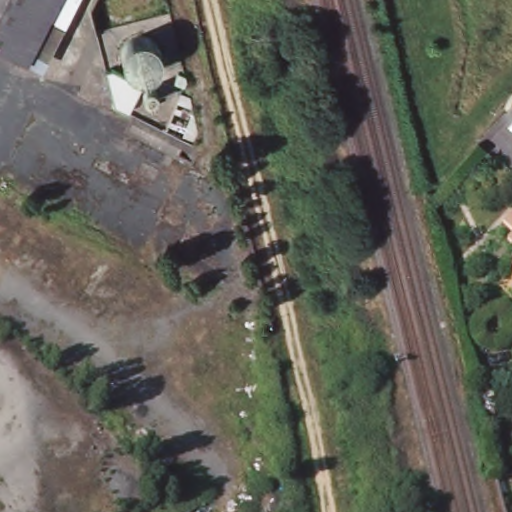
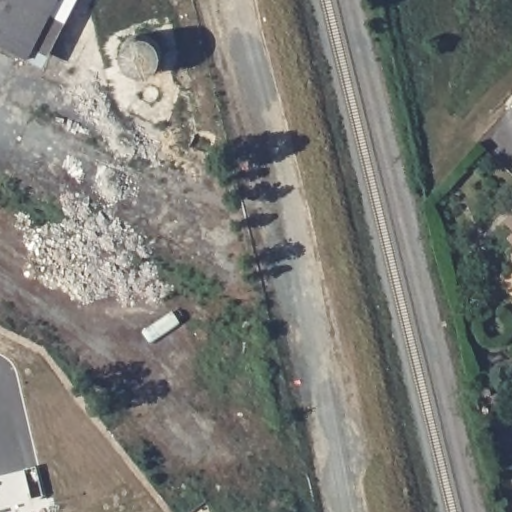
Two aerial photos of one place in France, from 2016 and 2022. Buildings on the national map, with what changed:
unchanged [(0,49),(0,0),(54,0),(23,60),(0,49)]
unchanged [(99,28),(91,30),(85,7),(89,0),(114,0),(99,28)]
unchanged [(143,94),(143,93),(143,92),(143,91),(144,91),(144,90),(144,89),(145,89),(145,88),(146,88),(147,88),(147,87),(148,87),(149,87),(150,87),(151,87),(152,87),(153,87),(154,88),(155,89),(156,90),(156,91),(157,91),(157,92),(157,93),(158,93),(158,94),(158,95),(158,96),(157,96),(157,97),(156,97),(156,98),(156,99),(155,99),(155,100),(154,100),(154,101),(153,101),(152,101),(151,101),(151,102),(150,102),(149,102),(148,101),(147,101),(146,101),(146,100),(145,100),(144,100),(144,99),(144,98),(144,97),(143,97),(143,96),(143,95),(143,94)]
unchanged [(181,92),(190,96),(198,131),(192,144),(166,129),(181,92)]
unchanged [(512,210),(512,221),(507,215),(512,210)]

